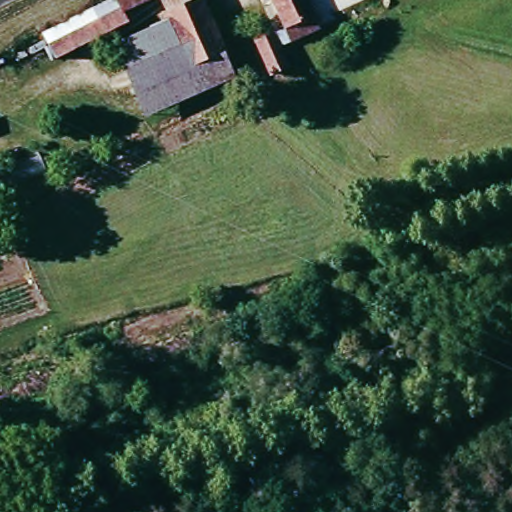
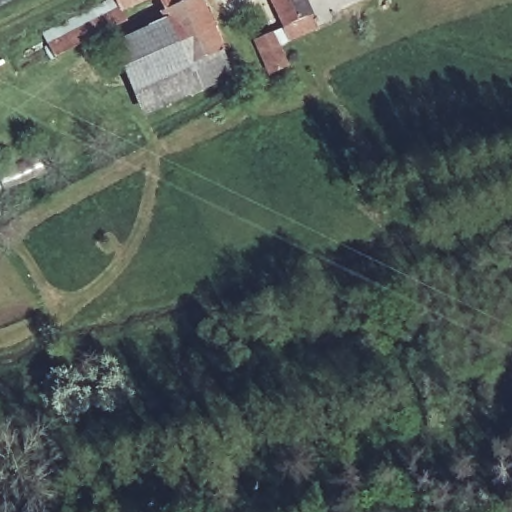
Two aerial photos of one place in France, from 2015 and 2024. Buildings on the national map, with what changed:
unchanged [(126,24),(55,59),(45,37),(106,0),(151,0),(121,12),(126,24)]
unchanged [(140,114),(112,43),(166,22),(157,0),(199,0),(230,79),(140,114)]
unchanged [(290,42),(270,0),(302,0),(316,29),(290,42)]
unchanged [(254,44),(270,36),(285,66),(268,74),(254,44)]
unchanged [(51,62),(20,74),(12,52),(41,39),(51,62)]
unchanged [(56,120),(92,104),(108,142),(70,155),(56,120)]

